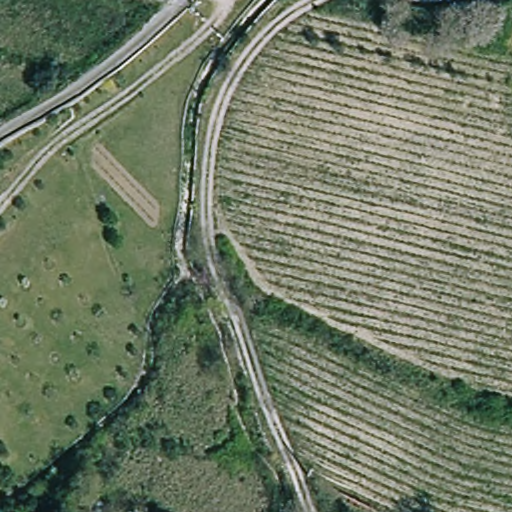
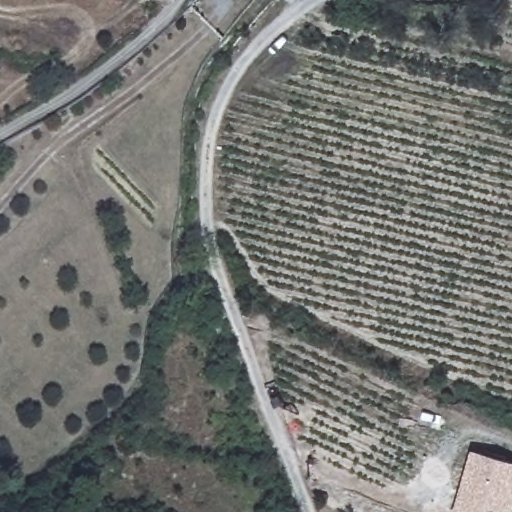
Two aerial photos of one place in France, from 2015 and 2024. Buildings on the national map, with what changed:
new [(510,512),(486,506),(484,512),(452,512),(471,450),(512,462),(512,511),(512,512),(510,512)]

